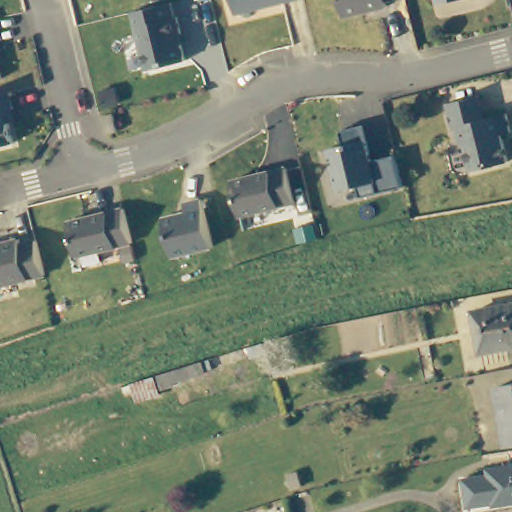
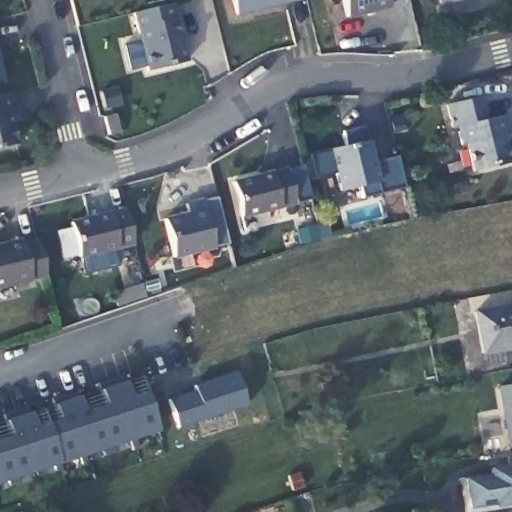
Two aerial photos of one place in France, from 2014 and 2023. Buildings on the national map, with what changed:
unchanged [(226,0),(299,0),(299,1),(230,18),(226,0)]
unchanged [(387,8),(343,18),(340,0),(391,0),(386,1),(387,8)]
unchanged [(439,0),(459,0),(440,5),(439,0)]
unchanged [(169,6),(170,19),(173,19),(176,36),(175,37),(180,64),(140,71),(129,14),(169,6)]
unchanged [(511,128),(502,130),(506,158),(470,166),(465,138),(459,139),(456,121),(451,122),(447,99),(480,91),(482,114),(507,109),(511,128)]
unchanged [(2,112),(10,146),(0,147),(0,96),(6,95),(9,111),(2,112)]
unchanged [(371,165),(396,160),(402,192),(360,201),(359,190),(340,194),(331,153),(345,150),(342,135),(364,131),(371,165)]
unchanged [(288,207),(235,219),(227,184),(281,173),(288,207)]
unchanged [(210,247),(169,255),(160,216),(184,213),(182,203),(199,199),(210,247)]
unchanged [(130,243),(75,254),(67,220),(122,208),(130,243)]
unchanged [(0,286),(0,245),(20,241),(20,246),(36,243),(45,278),(0,286)]
unchanged [(486,348),(484,335),(480,311),(512,306),(512,344),(486,348)]
new [(196,391),(193,383),(236,370),(249,403),(176,429),(166,398),(196,391)]
new [(0,439),(11,435),(5,421),(30,413),(35,427),(60,419),(54,404),(79,396),(84,412),(105,405),(100,389),(126,380),(130,396),(144,392),(158,431),(0,483),(0,439)]
unchanged [(499,383),(512,380),(512,441),(508,442),(499,383)]
unchanged [(495,509),(495,504),(466,509),(461,479),(488,474),(488,471),(512,466),(512,505),(495,509)]

